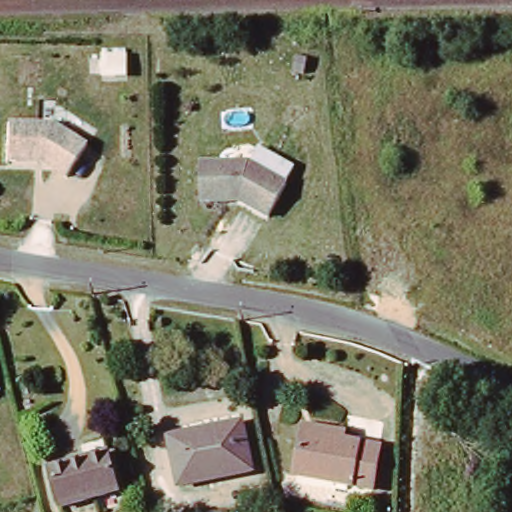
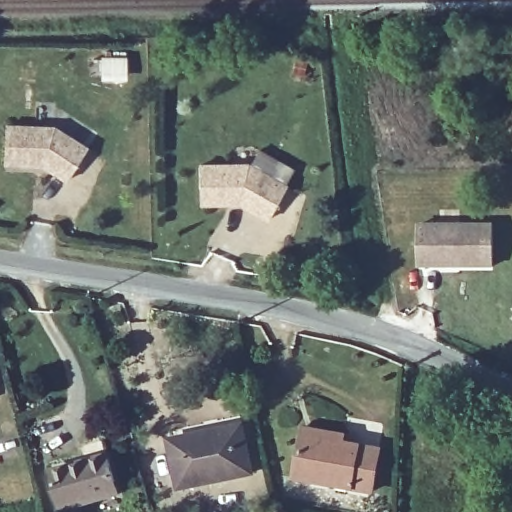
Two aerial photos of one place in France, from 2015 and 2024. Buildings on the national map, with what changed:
unchanged [(45,164),(11,164),(12,126),(60,128),(92,148),(72,180),(45,164)]
unchanged [(272,219),(245,203),(205,202),(205,164),(253,164),(291,185),(272,219)]
new [(420,224),(494,224),(493,266),(420,266),(420,224)]
unchanged [(184,486),(170,437),(240,418),(254,467),(184,486)]
unchanged [(375,491),(298,474),(307,434),(308,426),(346,434),(344,442),(383,451),(375,491)]
unchanged [(116,452),(128,494),(69,510),(57,468),(116,452)]

